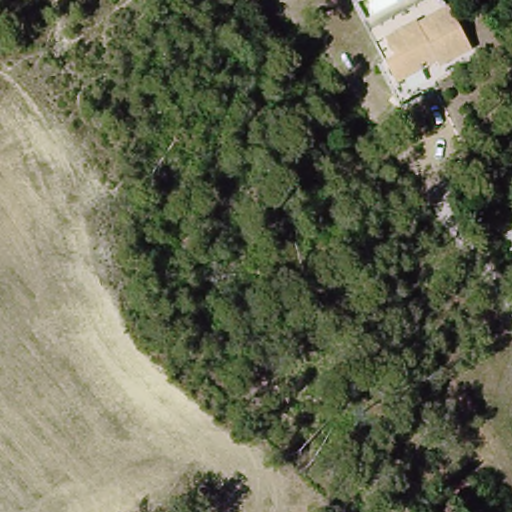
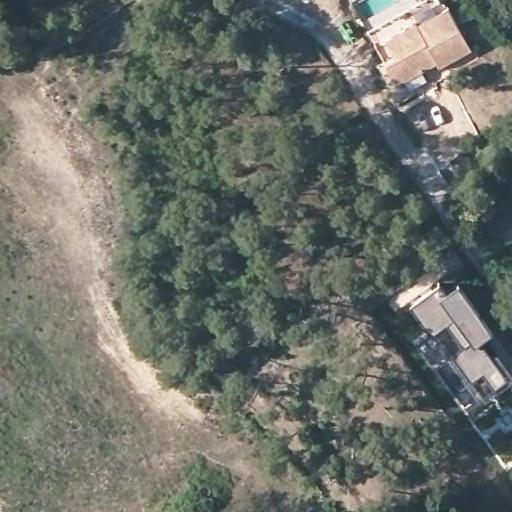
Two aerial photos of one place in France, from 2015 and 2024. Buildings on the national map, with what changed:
unchanged [(440,10),(457,24),(424,41),(422,38),(392,53),(402,70),(392,75),(385,62),(383,58),(375,45),(440,10)]
unchanged [(480,65),(447,83),(444,78),(405,100),(392,75),(402,70),(392,53),(422,38),(424,41),(457,24),(480,65)]
new [(432,333),(412,306),(439,288),(445,294),(458,284),(492,332),(480,341),(507,378),(493,388),(467,408),(420,342),(432,333)]

